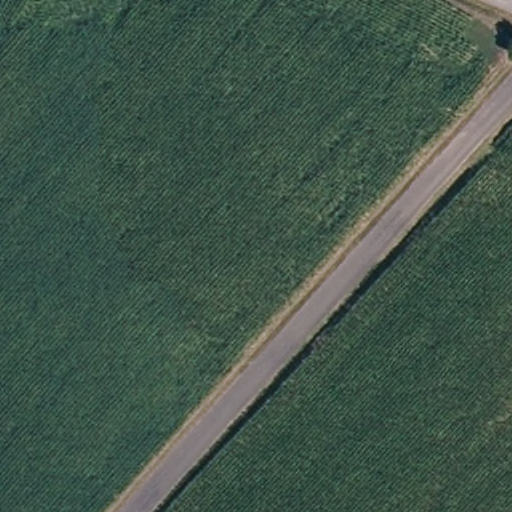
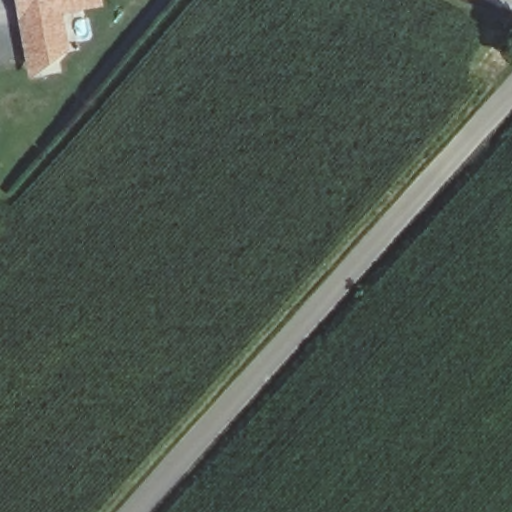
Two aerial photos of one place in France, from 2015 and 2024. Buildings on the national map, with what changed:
new [(63,12),(68,49),(30,76),(14,0),(103,0),(104,4),(63,12)]

